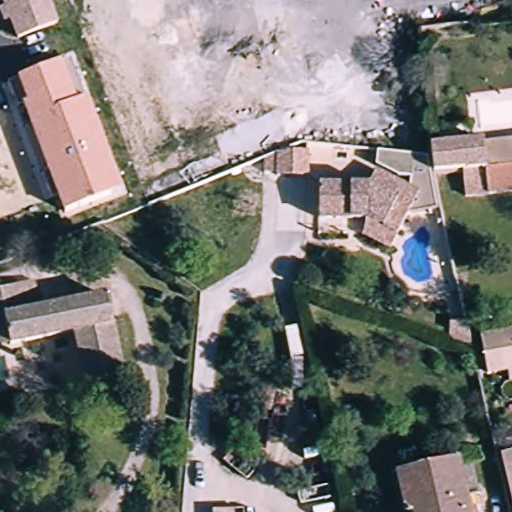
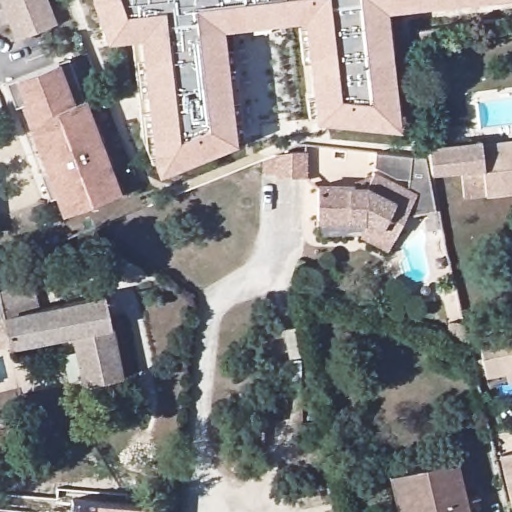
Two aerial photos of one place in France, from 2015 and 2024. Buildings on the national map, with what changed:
unchanged [(15,37),(0,0),(45,0),(54,21),(15,37)]
new [(400,126),(315,118),(303,18),(223,28),(237,141),(159,173),(155,165),(139,36),(107,41),(92,0),(473,0),(387,10),(400,126)]
unchanged [(123,191),(63,212),(21,104),(25,101),(17,79),(61,61),(70,60),(87,98),(123,191)]
unchanged [(435,157),(433,148),(484,143),(485,147),(487,172),(463,174),(437,176),(435,157)]
unchanged [(487,172),(485,147),(512,145),(512,170),(487,172)]
new [(274,154),(282,151),(296,150),(310,152),(308,177),(280,174),(280,172),(272,171),(274,154)]
new [(425,157),(436,209),(406,214),(415,186),(373,174),(375,165),(377,152),(425,157)]
unchanged [(467,198),(463,174),(487,172),(512,170),(512,194),(467,198)]
unchanged [(318,180),(365,186),(370,173),(415,186),(401,231),(368,219),(315,213),(318,180)]
unchanged [(368,219),(401,231),(397,246),(358,233),(313,228),(315,213),(368,219)]
unchanged [(101,302),(115,383),(78,389),(70,338),(0,349),(0,300),(2,315),(101,302)]
unchanged [(502,381),(500,371),(480,374),(473,337),(512,331),(512,380),(502,381)]
unchanged [(510,512),(495,458),(512,454),(512,512),(510,512)]
unchanged [(466,512),(397,512),(388,475),(397,473),(455,461),(466,512)]
new [(157,506),(156,512),(74,512),(75,496),(157,506)]

